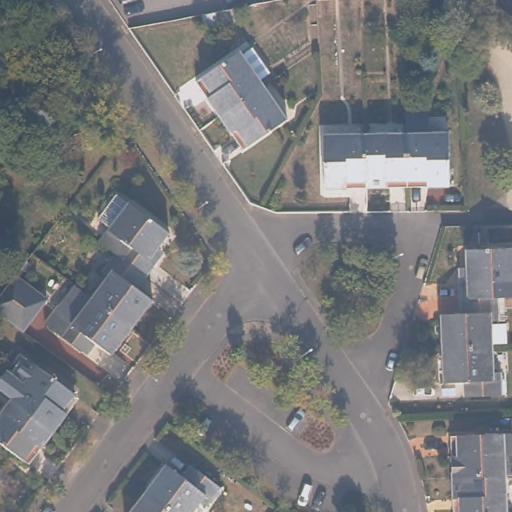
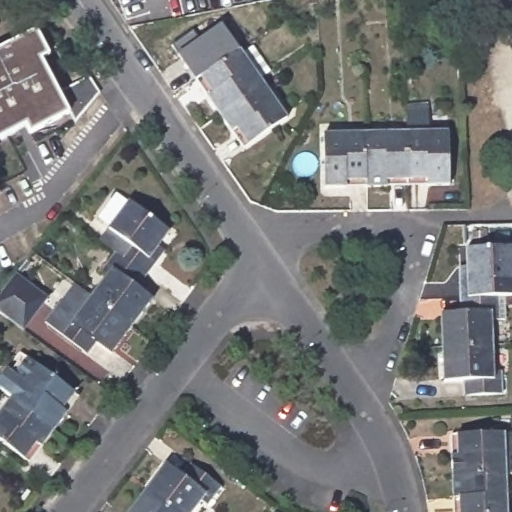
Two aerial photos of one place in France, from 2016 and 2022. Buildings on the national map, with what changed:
unchanged [(499,1),(500,0),(512,0),(512,13),(499,1)]
unchanged [(232,6),(235,17),(202,24),(199,13),(232,6)]
new [(52,56),(44,60),(60,91),(90,75),(102,91),(75,123),(72,113),(30,135),(25,127),(0,141),(0,48),(35,28),(52,56)]
unchanged [(193,78),(236,49),(238,52),(248,45),(266,70),(256,77),(260,82),(217,112),(193,78)]
unchanged [(283,115),(240,145),(217,112),(260,82),(283,115)]
unchanged [(407,96),(430,95),(431,121),(446,120),(450,176),(409,179),(408,123),(407,96)]
unchanged [(409,179),(368,181),(366,126),(408,123),(409,179)]
unchanged [(328,183),(326,128),(366,126),(368,181),(328,183)]
unchanged [(99,233),(107,222),(109,219),(97,210),(114,187),(126,195),(127,194),(170,225),(153,248),(158,252),(145,268),(113,244),(99,233)]
unchanged [(494,287),(458,288),(456,265),(464,265),(463,239),(512,237),(512,287),(494,287)]
unchanged [(145,268),(135,281),(154,297),(135,322),(94,292),(111,269),(100,262),(113,244),(145,268)]
unchanged [(48,295),(24,327),(0,309),(0,305),(22,276),(48,295)]
unchanged [(494,287),(496,312),(487,312),(488,335),(443,335),(442,304),(460,303),(458,288),(494,287)]
unchanged [(115,350),(97,338),(89,348),(46,316),(59,298),(79,312),(94,292),(135,322),(115,350)]
unchanged [(488,335),(489,362),(496,364),(498,385),(462,386),(462,370),(444,370),(443,335),(488,335)]
unchanged [(37,359),(75,388),(64,403),(71,408),(57,426),(12,392),(37,359)]
unchanged [(44,444),(39,439),(26,457),(0,438),(0,408),(12,392),(57,426),(44,444)]
unchanged [(450,432),(512,430),(512,473),(506,473),(452,476),(450,432)]
unchanged [(184,471),(195,456),(221,477),(206,499),(201,495),(188,512),(179,512),(142,483),(163,455),(184,471)]
unchanged [(509,512),(455,512),(452,476),(506,473),(509,512)]
unchanged [(122,512),(121,511),(142,483),(179,512),(122,512)]

